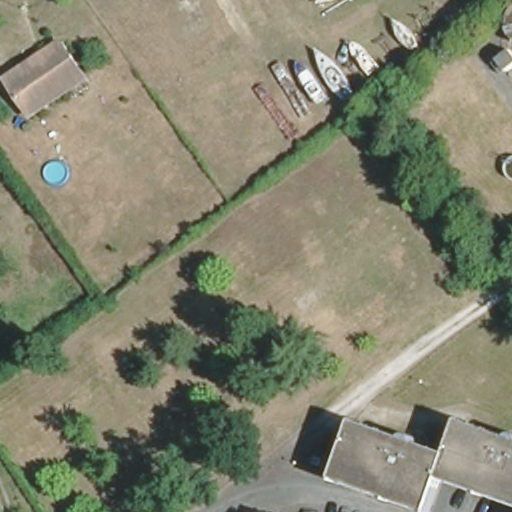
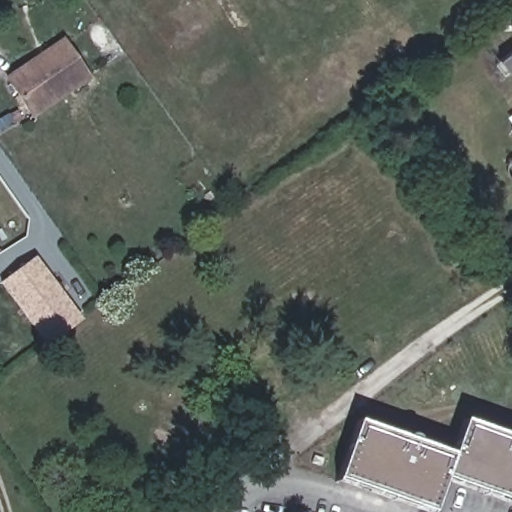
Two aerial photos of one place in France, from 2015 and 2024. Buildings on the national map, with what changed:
demolished [(508,27),(508,20),(510,12),(512,12),(512,36),(511,34),(508,27)]
unchanged [(80,77),(26,116),(0,81),(55,42),(80,77)]
new [(35,257),(82,320),(46,344),(0,283),(35,257)]
unchanged [(512,504),(443,480),(430,512),(336,480),(356,423),(450,454),(463,420),(512,437),(512,504)]

